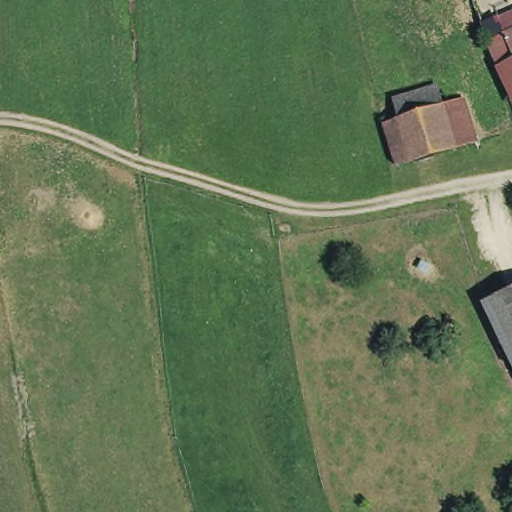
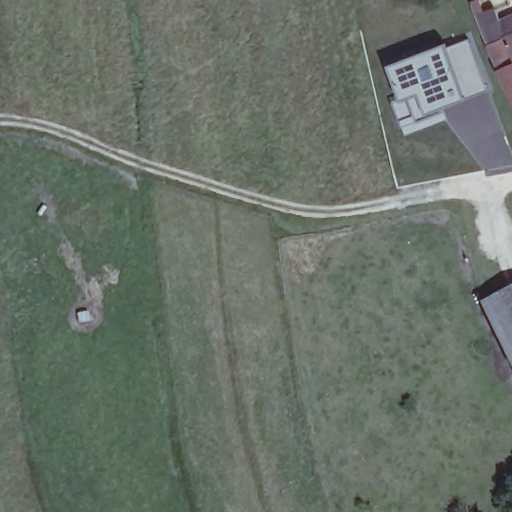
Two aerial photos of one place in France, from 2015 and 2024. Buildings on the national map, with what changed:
unchanged [(490,44),(506,37),(506,36),(512,33),(512,62),(500,67),(490,44)]
new [(490,91),(442,105),(448,121),(407,135),(395,103),(402,100),(388,62),(471,36),(490,91)]
unchanged [(500,67),(512,62),(512,94),(500,67)]
unchanged [(490,302),(512,292),(512,349),(490,302)]

